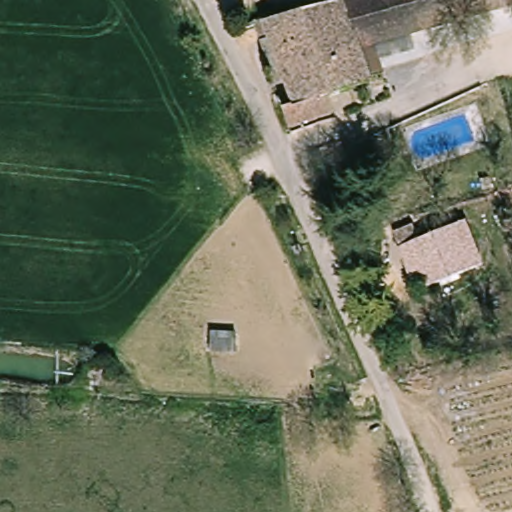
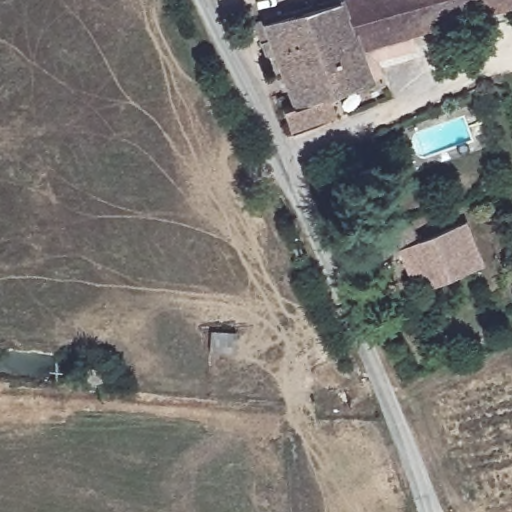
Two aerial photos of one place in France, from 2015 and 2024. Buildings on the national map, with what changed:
unchanged [(248,22),(332,0),(347,0),(365,46),(374,79),(388,76),(394,93),(340,109),(341,119),(291,132),(282,112),(296,106),(288,81),(272,87),(264,62),(248,22)]
unchanged [(365,46),(347,0),(512,0),(512,4),(365,46)]
unchanged [(411,260),(396,229),(416,220),(424,238),(472,218),(492,261),(434,282),(429,270),(417,276),(411,260)]

